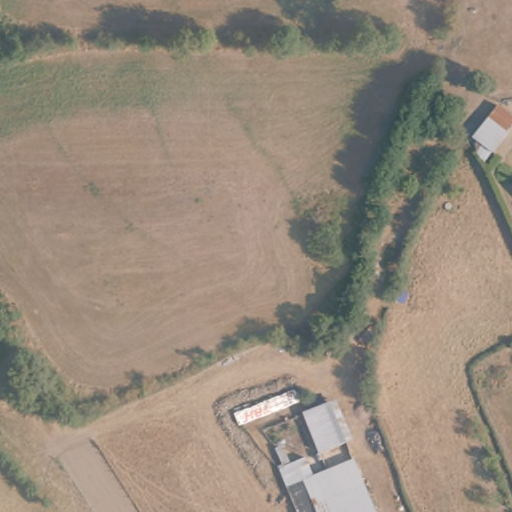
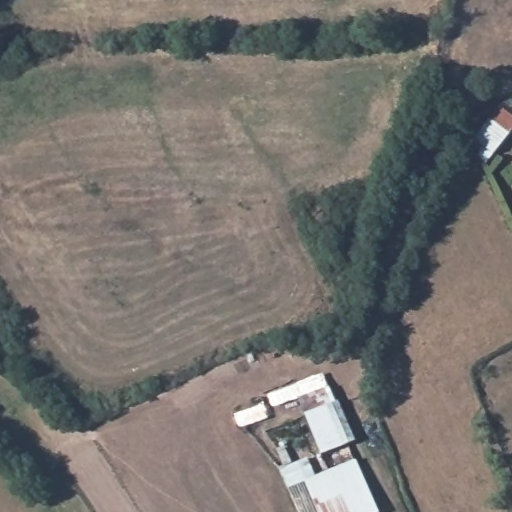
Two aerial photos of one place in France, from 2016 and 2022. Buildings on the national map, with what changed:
unchanged [(471,161),(475,154),(466,146),(493,109),(512,126),(512,137),(482,171),(471,161)]
unchanged [(377,512),(298,512),(288,488),(282,470),(301,462),(308,480),(323,473),(300,422),(330,405),(355,461),(343,466),(357,460),(377,512)]

